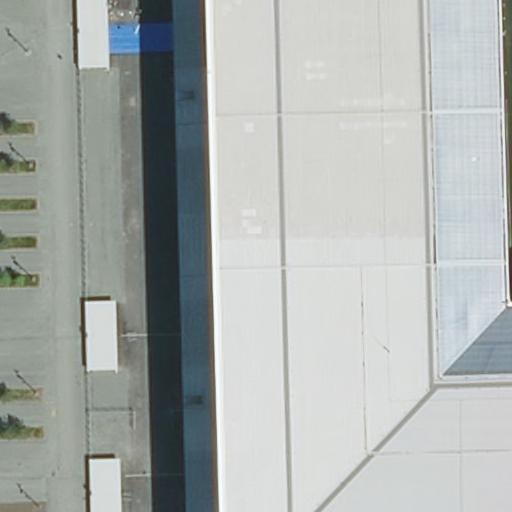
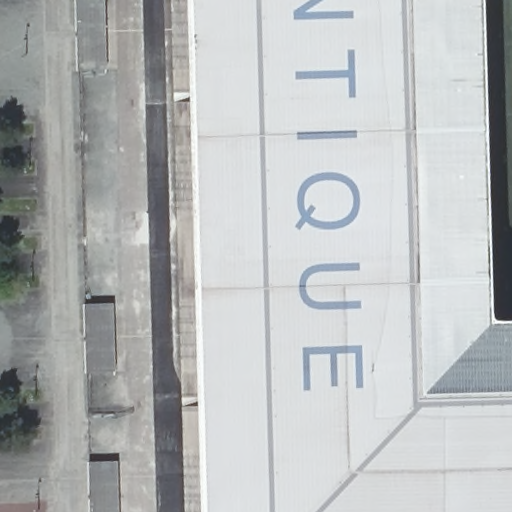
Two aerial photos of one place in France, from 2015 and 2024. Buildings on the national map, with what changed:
unchanged [(79,70),(78,0),(109,0),(110,69),(79,70)]
unchanged [(210,0),(503,0),(512,281),(512,512),(224,512),(210,0)]
unchanged [(116,301),(118,371),(87,372),(86,302),(116,301)]
unchanged [(120,459),(122,512),(91,512),(90,460),(120,459)]

